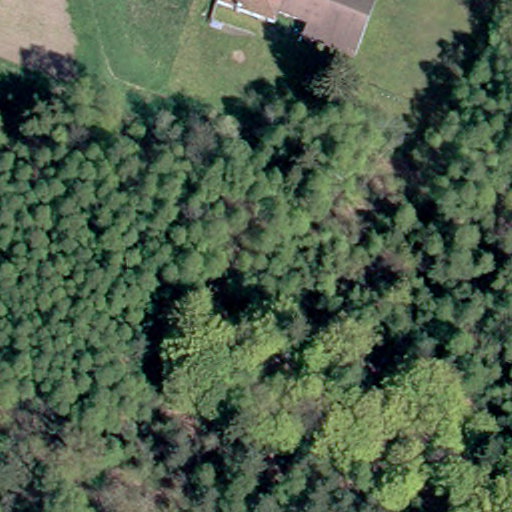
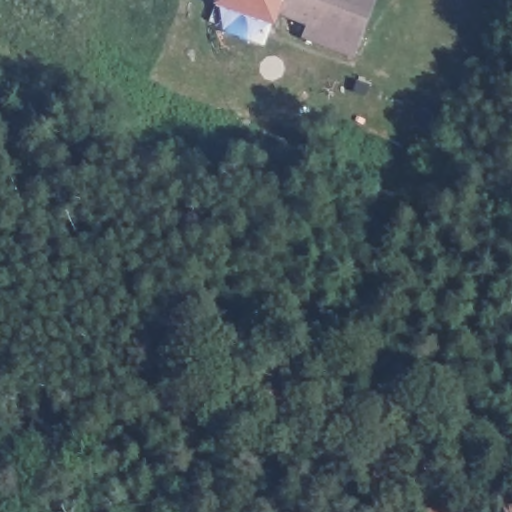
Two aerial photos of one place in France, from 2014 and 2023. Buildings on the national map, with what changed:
unchanged [(308,23),(280,16),(275,26),(212,1),(213,0),(375,0),(354,56),(302,36),(308,23)]
unchanged [(252,128),(245,139),(216,126),(223,113),(252,128)]

